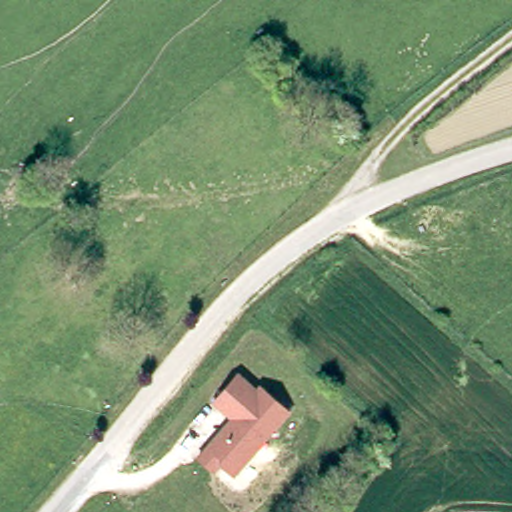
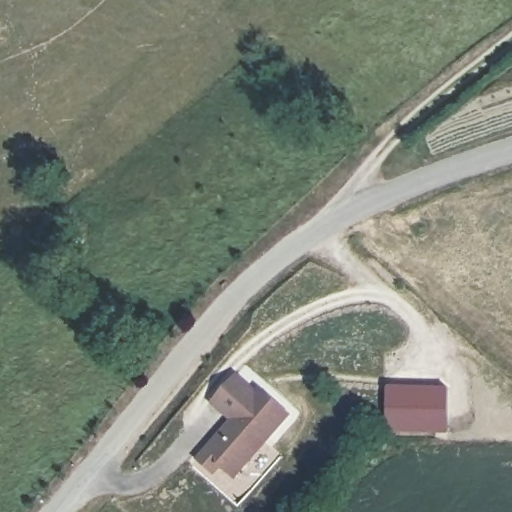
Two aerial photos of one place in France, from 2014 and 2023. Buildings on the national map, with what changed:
unchanged [(256,388),(260,383),(291,413),(233,478),(221,468),(215,475),(196,458),(230,420),(212,403),(239,372),(256,388)]
new [(446,434),(387,432),(388,385),(447,386),(446,434)]

